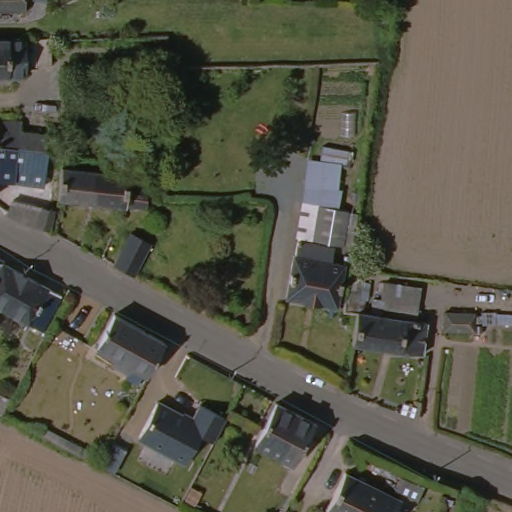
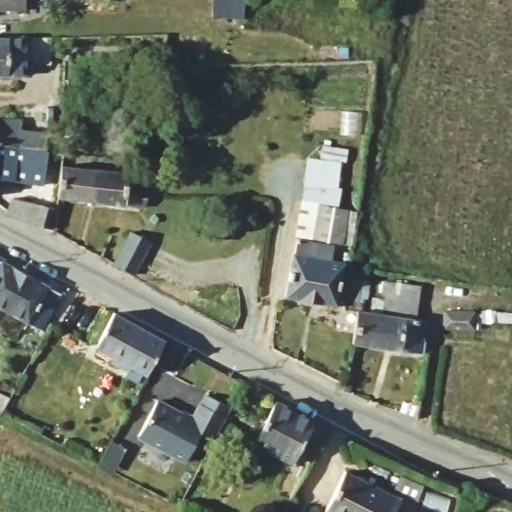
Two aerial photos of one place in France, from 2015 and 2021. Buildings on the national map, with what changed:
unchanged [(11,4),(11,16),(0,16),(0,0),(31,0),(31,5),(11,4)]
unchanged [(240,0),(240,1),(192,0),(240,0)]
unchanged [(11,69),(11,76),(0,77),(0,42),(23,42),(29,42),(36,42),(38,68),(11,69)]
unchanged [(0,154),(0,127),(20,128),(20,137),(45,139),(44,156),(45,156),(44,175),(57,178),(55,203),(49,237),(43,236),(27,231),(18,226),(6,220),(11,185),(0,183),(0,154)]
unchanged [(315,164),(318,150),(346,153),(337,212),(354,215),(351,252),(348,280),(367,282),(367,302),(379,303),(379,285),(416,290),(411,355),(351,348),(356,317),(281,299),(288,257),(301,161),(315,164)]
unchanged [(55,203),(57,178),(58,174),(58,172),(124,180),(124,193),(143,195),(141,213),(55,203)]
unchanged [(126,222),(144,232),(127,265),(108,253),(126,222)]
unchanged [(42,327),(0,304),(0,256),(61,291),(42,327)]
unchanged [(144,370),(141,369),(136,379),(124,372),(126,368),(114,362),(117,356),(96,344),(114,310),(161,335),(144,370)]
unchanged [(431,315),(512,317),(512,337),(429,336),(431,315)]
unchanged [(0,400),(0,385),(6,388),(0,400)]
unchanged [(158,400),(188,414),(197,401),(223,418),(189,467),(134,441),(158,400)]
unchanged [(294,461),(256,442),(278,400),(314,419),(294,461)]
unchanged [(332,503),(350,465),(405,490),(394,512),(351,512),(332,503)]

